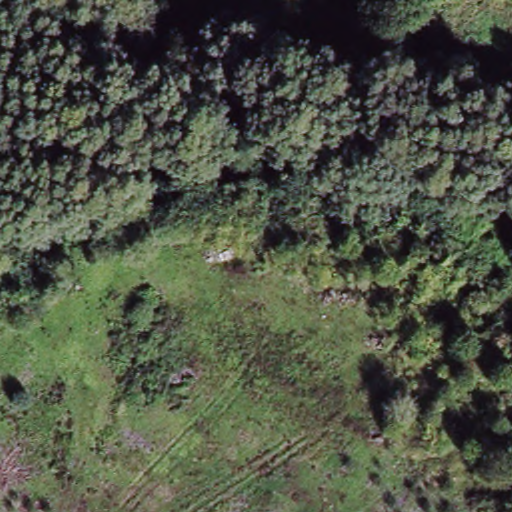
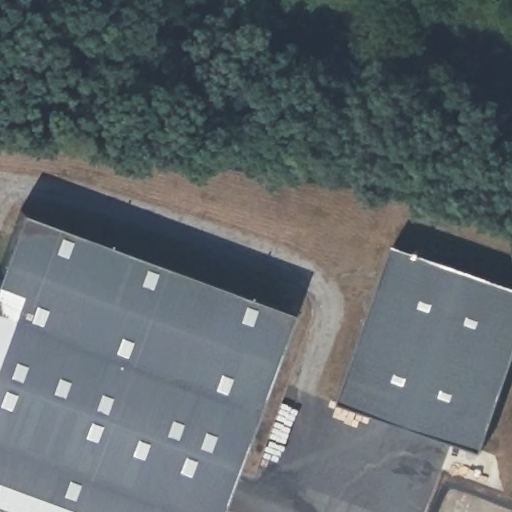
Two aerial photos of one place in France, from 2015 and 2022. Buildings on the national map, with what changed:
new [(16,204),(289,308),(214,512),(0,512),(0,251),(16,204)]
new [(512,349),(478,444),(336,398),(391,238),(512,280),(512,349)]

